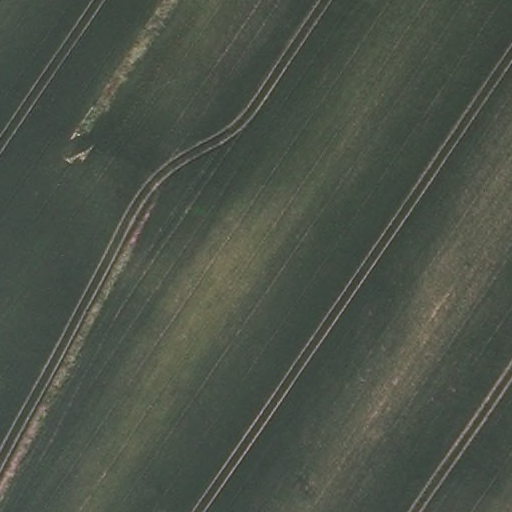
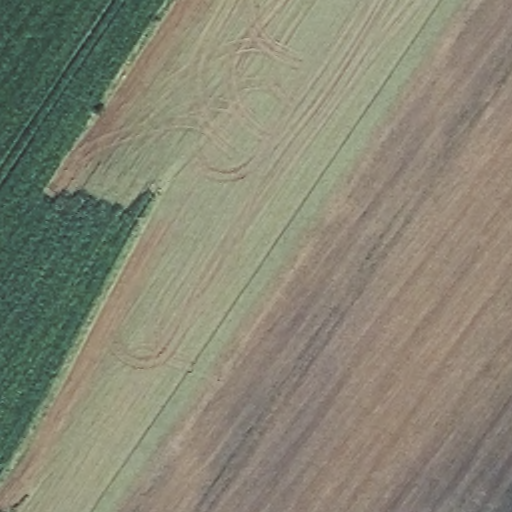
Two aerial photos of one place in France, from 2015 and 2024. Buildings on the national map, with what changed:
[]

